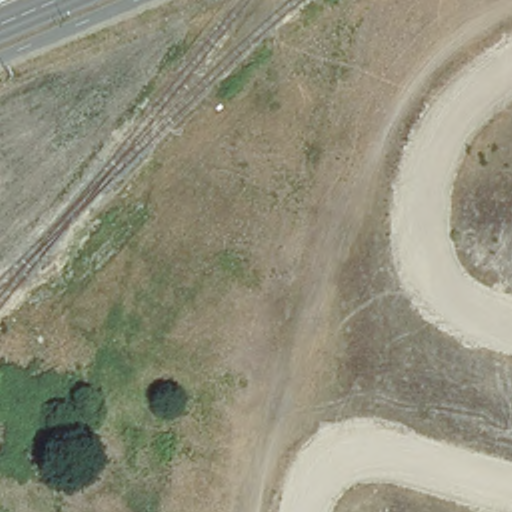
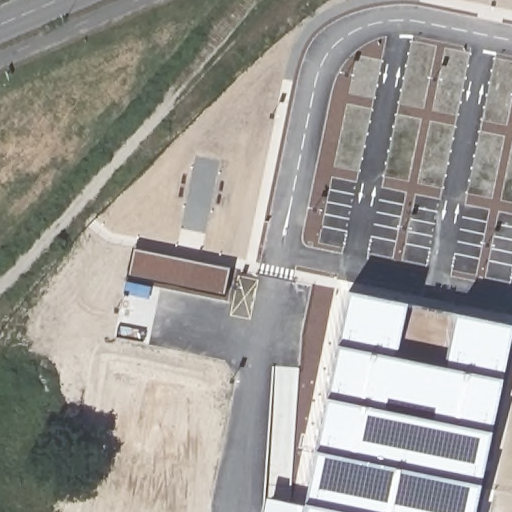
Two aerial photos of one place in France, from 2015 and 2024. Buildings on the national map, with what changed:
new [(475,512),(263,512),(267,497),(304,506),(349,292),(512,325),(512,330),(475,512)]

